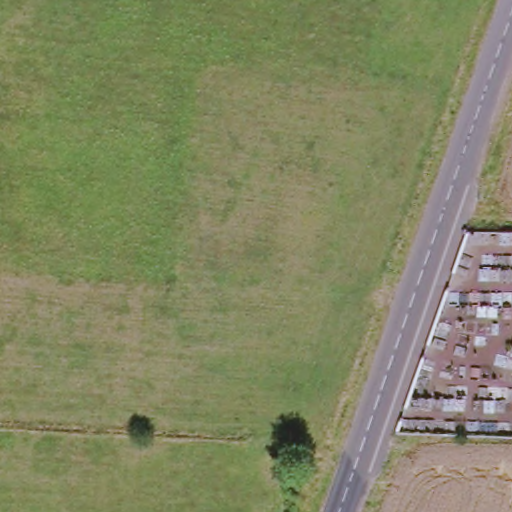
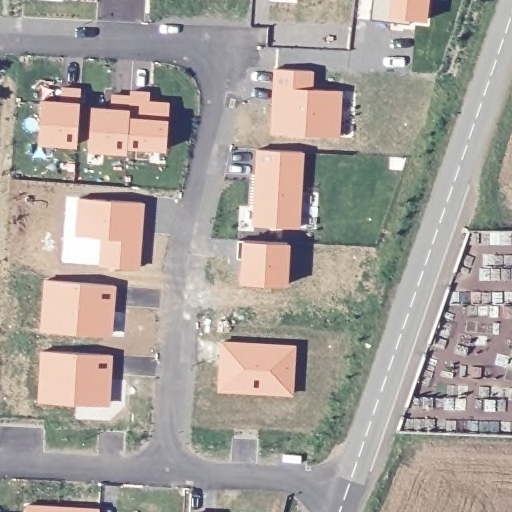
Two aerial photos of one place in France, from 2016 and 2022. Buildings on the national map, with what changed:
new [(391,22),(370,19),(372,0),(427,0),(425,19),(410,18),(410,24),(391,22)]
new [(275,68),(312,70),(312,89),(342,90),(338,137),(272,134),(275,68)]
new [(39,142),(42,101),(60,101),(60,89),(80,90),(78,103),(75,144),(39,142)]
new [(91,107),(112,109),(112,96),(130,98),(131,93),(149,93),(149,103),(167,105),(167,120),(165,148),(125,144),(125,151),(88,149),(91,107)]
new [(258,149),(302,151),(298,228),(254,225),(258,149)]
new [(138,268),(100,265),(103,238),(75,235),(78,198),(142,202),(138,268)]
new [(288,242),(286,284),(242,282),(243,258),(237,258),(238,239),(288,242)]
new [(114,285),(112,305),(108,304),(106,336),(41,331),(45,280),(114,285)]
new [(295,346),(292,394),(220,390),(222,342),(295,346)]
new [(111,354),(110,374),(105,374),(104,405),(40,402),(42,351),(111,354)]
new [(100,510),(99,512),(26,512),(27,506),(100,510)]

